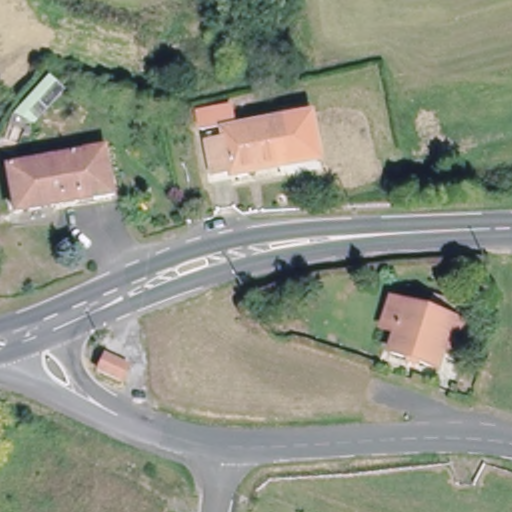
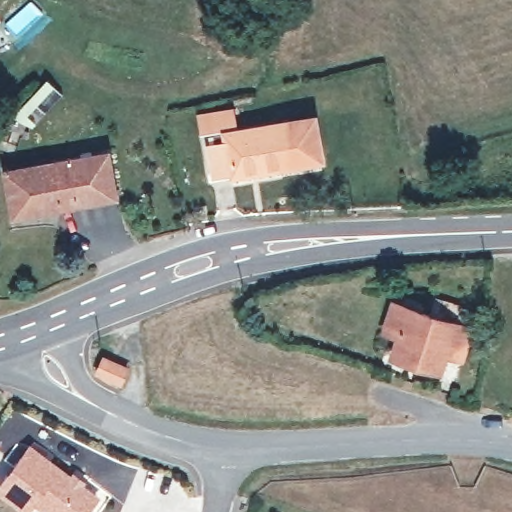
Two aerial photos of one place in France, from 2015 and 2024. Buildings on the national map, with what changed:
unchanged [(224,125),(223,113),(240,112),(241,124),(224,125)]
unchanged [(318,117),(326,163),(286,170),(284,126),(318,117)]
unchanged [(286,170),(239,175),(238,169),(219,171),(215,141),(219,141),(219,131),(240,129),(284,126),(286,170)]
unchanged [(46,177),(53,177),(50,158),(106,147),(115,189),(51,201),(46,177)]
unchanged [(14,208),(6,167),(50,158),(53,177),(46,177),(51,201),(14,208)]
unchanged [(433,302),(453,309),(460,312),(458,324),(466,327),(462,347),(444,341),(434,373),(386,357),(400,311),(425,318),(433,302)]
unchanged [(99,371),(104,357),(127,366),(123,379),(99,371)]
new [(73,469),(88,481),(86,485),(101,496),(89,512),(49,512),(36,502),(27,512),(25,512),(0,494),(0,482),(31,442),(69,473),(73,469)]

